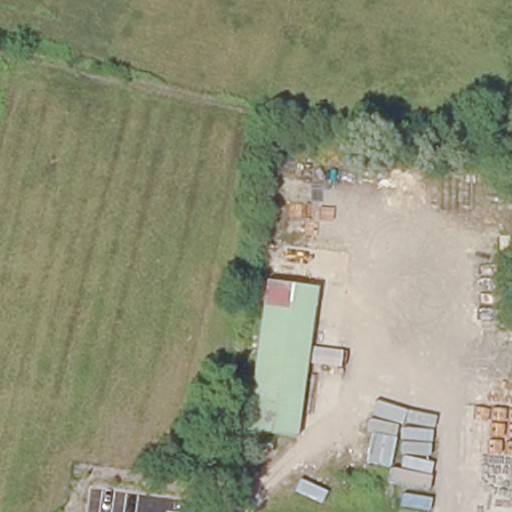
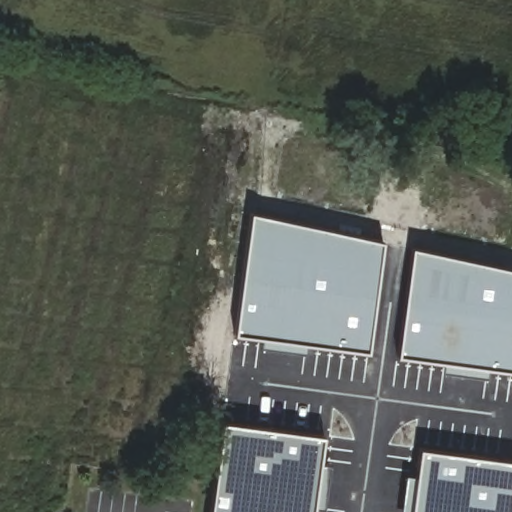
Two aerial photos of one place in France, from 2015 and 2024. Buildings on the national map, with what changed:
new [(233,333),(250,211),(382,239),(367,352),(233,333)]
new [(512,268),(512,371),(396,356),(410,245),(512,268)]
demolished [(322,288),(302,437),(250,430),(270,281),(322,288)]
new [(323,435),(313,512),(208,512),(220,420),(323,435)]
new [(512,460),(512,512),(410,512),(418,447),(512,460)]
demolished [(512,449),(512,512),(489,512),(493,448),(512,449)]
demolished [(425,497),(423,512),(388,512),(390,493),(425,497)]

